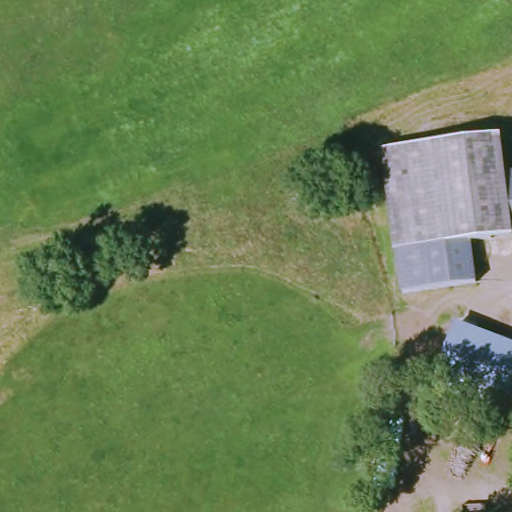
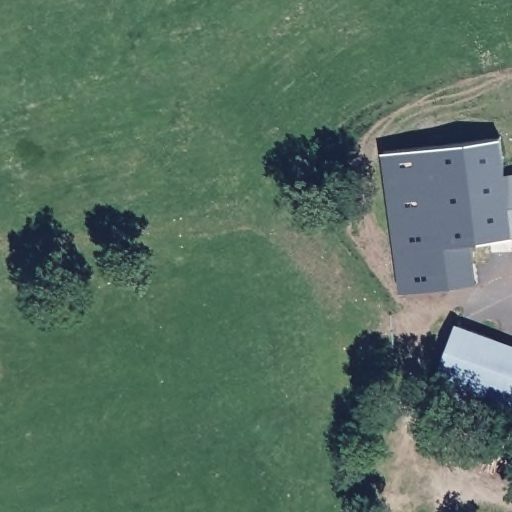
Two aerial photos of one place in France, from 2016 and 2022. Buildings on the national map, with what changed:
unchanged [(472,242),(477,282),(403,289),(393,214),(385,152),(507,136),(512,174),(512,237),(472,242)]
unchanged [(453,329),(512,352),(512,406),(434,376),(453,329)]

